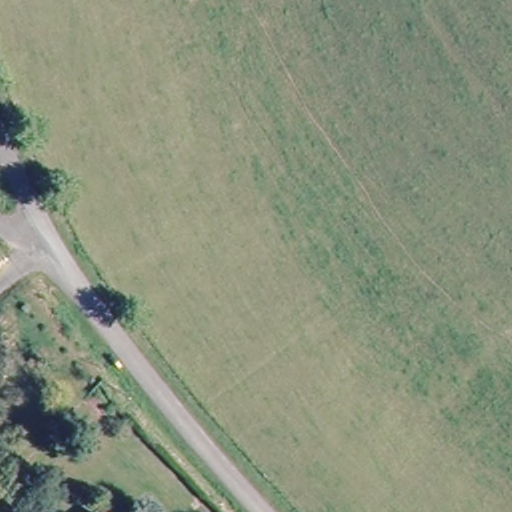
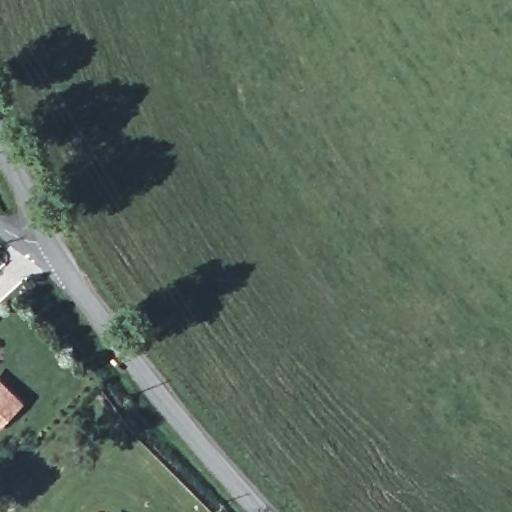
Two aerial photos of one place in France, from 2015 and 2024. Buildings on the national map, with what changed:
new [(24,402),(0,425),(0,378),(24,402)]

